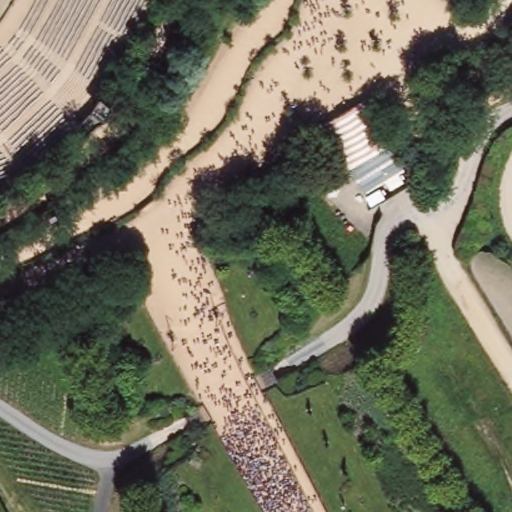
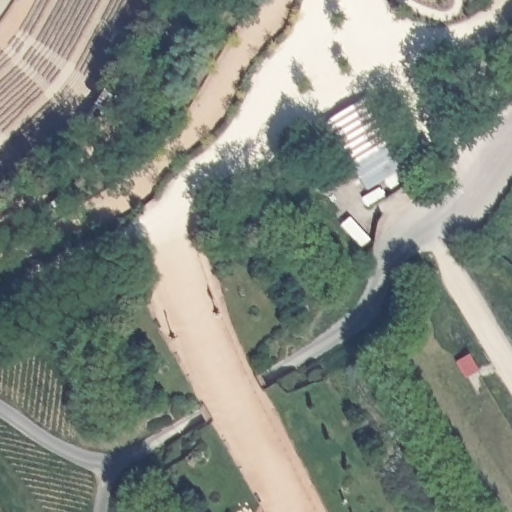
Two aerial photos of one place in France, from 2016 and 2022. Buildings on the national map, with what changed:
unchanged [(2,50),(19,34),(36,0),(163,0),(160,8),(140,45),(108,93),(117,100),(110,113),(100,108),(82,134),(66,154),(37,175),(0,194),(0,51),(2,50)]
unchanged [(387,146),(391,145),(404,170),(365,192),(356,176),(352,179),(323,125),(362,101),(387,146)]

